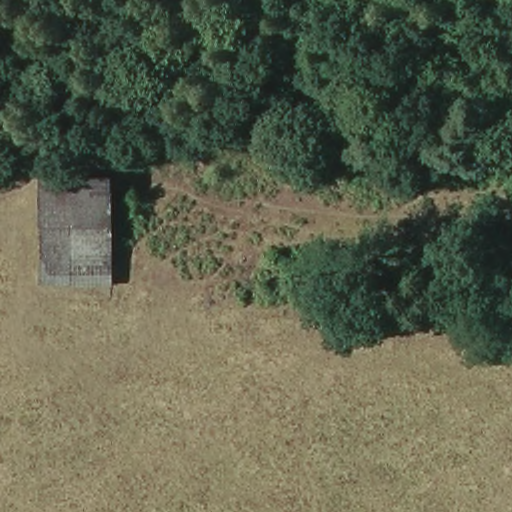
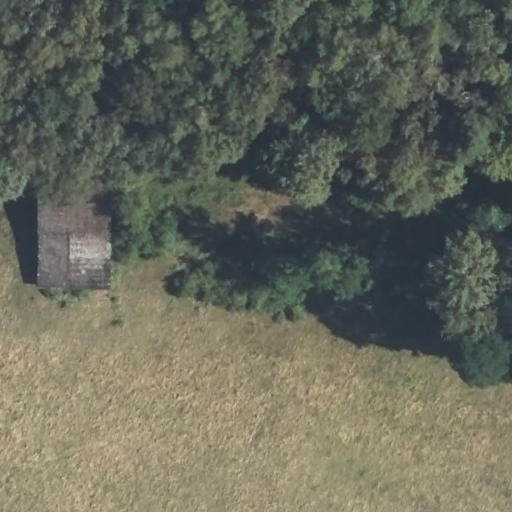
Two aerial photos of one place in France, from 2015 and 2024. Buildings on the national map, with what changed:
unchanged [(107,179),(109,282),(39,287),(39,181),(107,179)]

